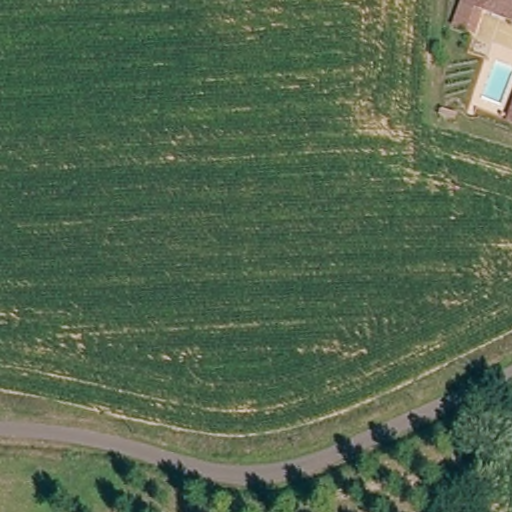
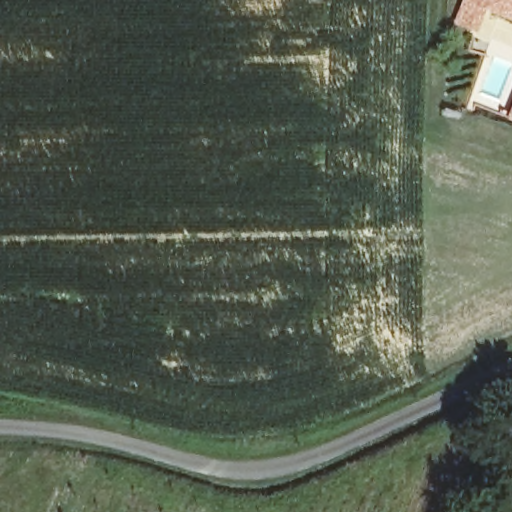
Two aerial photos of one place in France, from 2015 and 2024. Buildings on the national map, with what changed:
unchanged [(512,0),(512,21),(475,5),(465,25),(453,19),(461,0),(512,0)]

